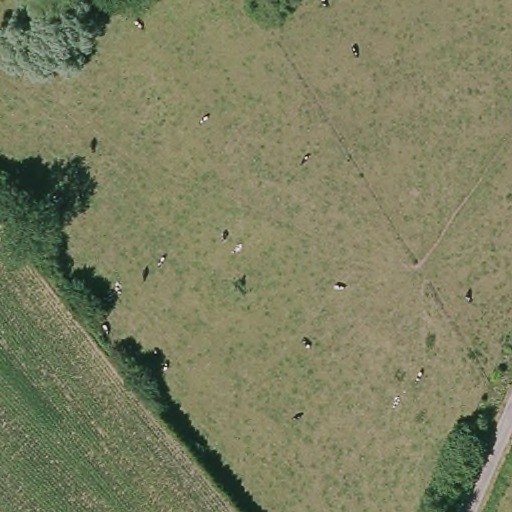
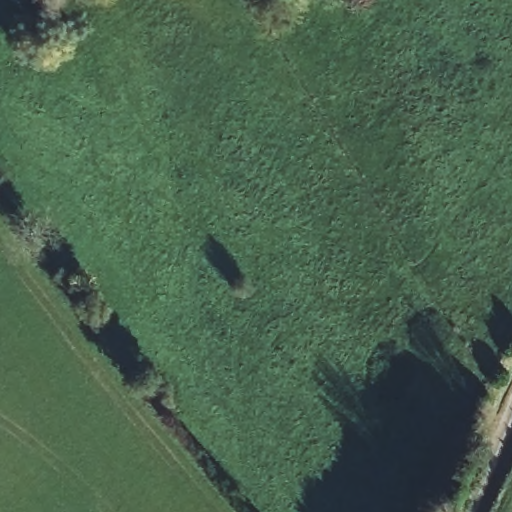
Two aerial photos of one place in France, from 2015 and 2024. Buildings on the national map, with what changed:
[]

